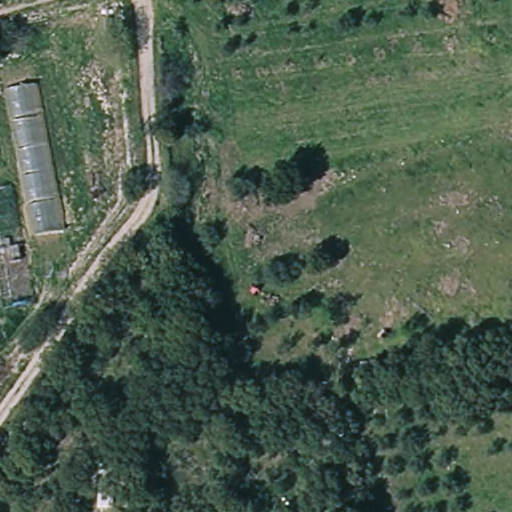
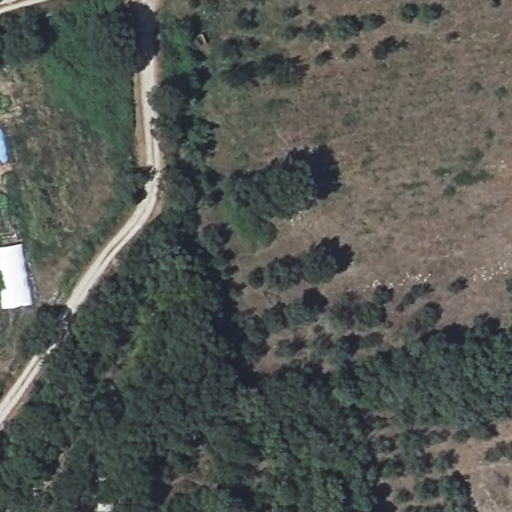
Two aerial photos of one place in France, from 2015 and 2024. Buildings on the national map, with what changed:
demolished [(36,81),(65,237),(41,244),(5,88),(36,81)]
demolished [(0,346),(0,331),(3,346),(0,346)]

